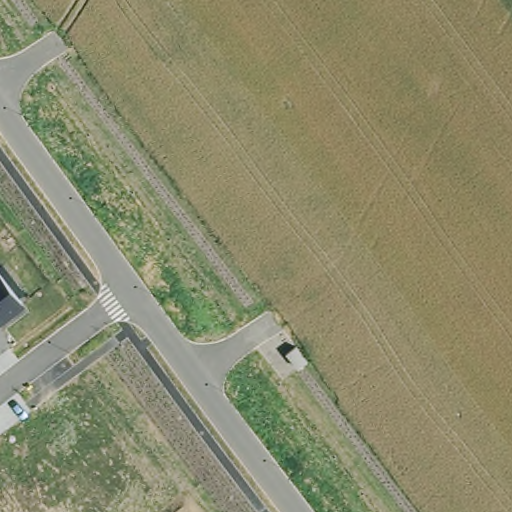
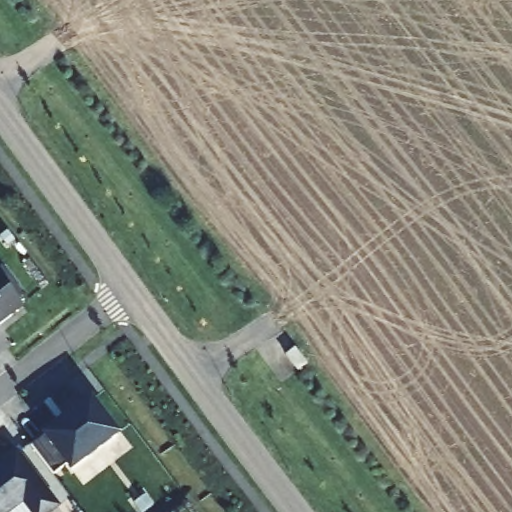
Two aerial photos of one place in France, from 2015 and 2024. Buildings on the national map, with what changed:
unchanged [(19,304),(0,320),(0,281),(19,304)]
new [(91,400),(118,434),(71,470),(68,465),(53,475),(31,446),(91,400)]
new [(18,453),(58,506),(51,512),(31,512),(23,502),(10,512),(0,512),(0,467),(18,453)]

